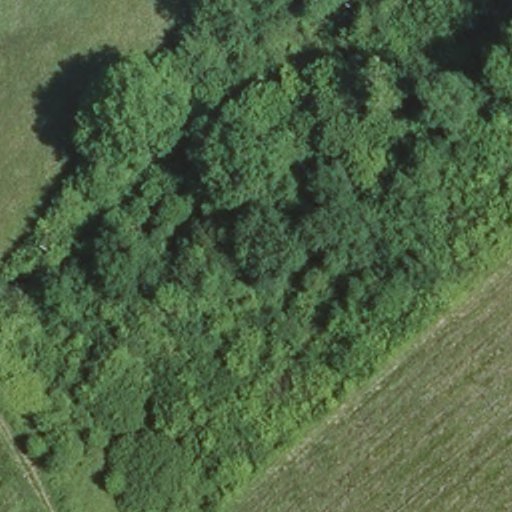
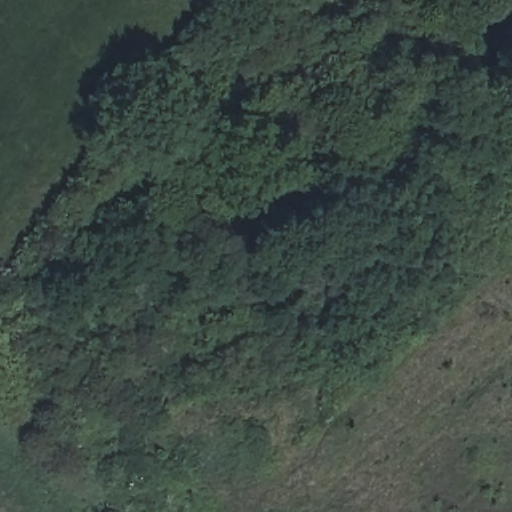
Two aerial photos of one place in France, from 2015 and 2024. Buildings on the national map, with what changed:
[]

